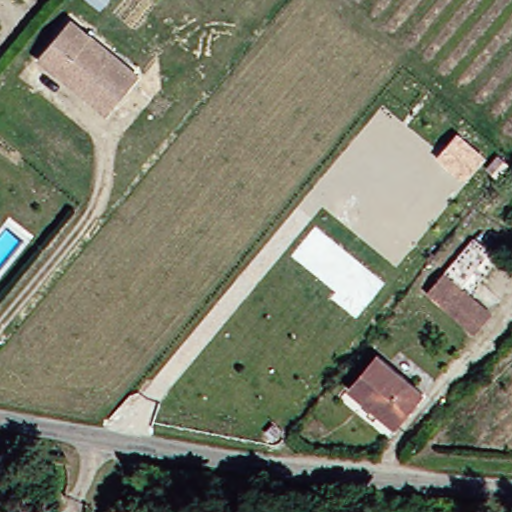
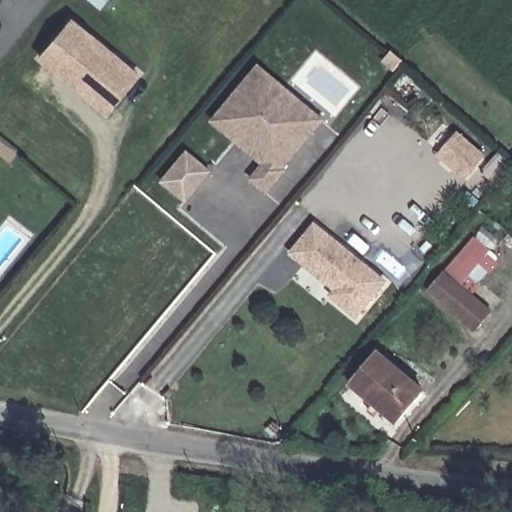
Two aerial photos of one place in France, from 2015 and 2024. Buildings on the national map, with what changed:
unchanged [(54,72),(36,57),(67,19),(134,73),(109,104),(104,112),(54,72)]
new [(259,165),(209,123),(258,66),(326,122),(267,199),(248,181),(259,165)]
new [(459,134),(483,154),(465,175),(441,154),(459,134)]
new [(185,151),(208,170),(184,199),(162,180),(185,151)]
new [(387,282),(357,322),(327,298),(333,292),(286,256),(315,224),(387,282)]
unchanged [(439,275),(474,236),(499,255),(466,297),(439,275)]
unchanged [(461,335),(411,290),(432,268),(439,275),(466,297),(482,310),(461,335)]
unchanged [(344,387),(373,353),(418,392),(389,425),(344,387)]

